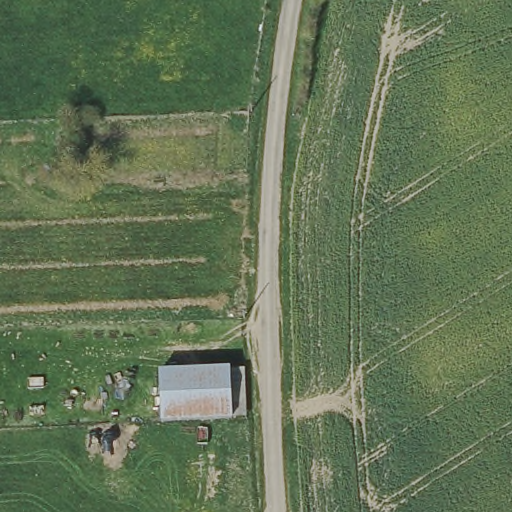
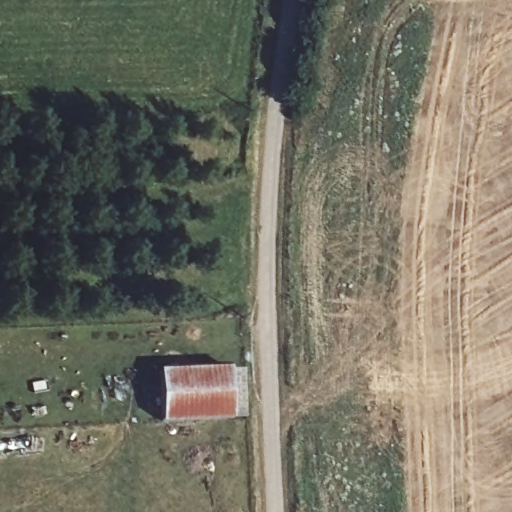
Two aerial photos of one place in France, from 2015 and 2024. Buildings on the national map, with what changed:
unchanged [(230,372),(231,424),(160,426),(159,374),(230,372)]

